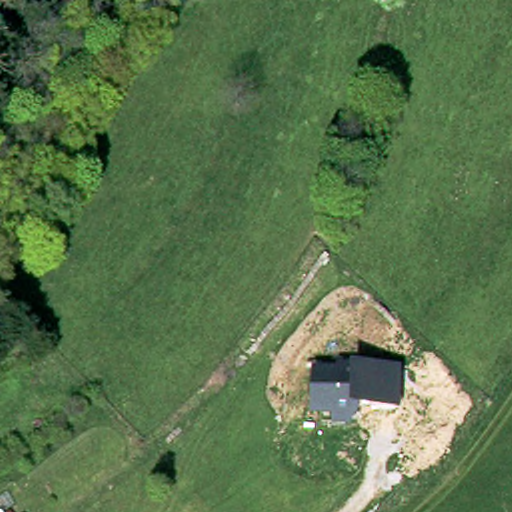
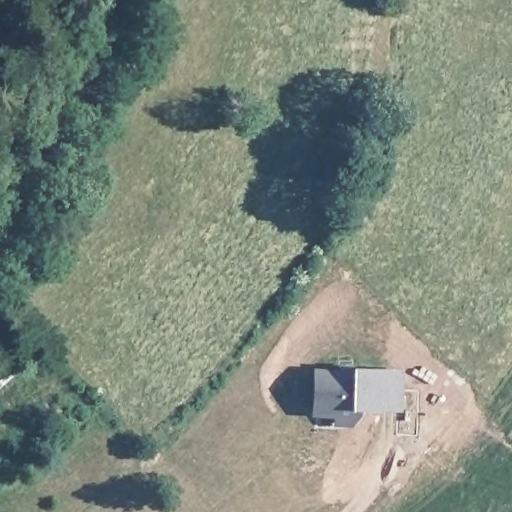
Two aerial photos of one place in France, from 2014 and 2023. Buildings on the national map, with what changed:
unchanged [(352,370),(351,367),(401,372),(399,412),(360,408),(359,433),(331,431),(332,421),(311,419),(314,369),(352,370)]

